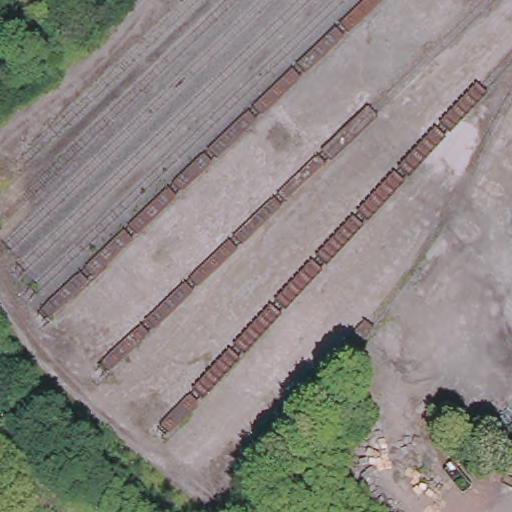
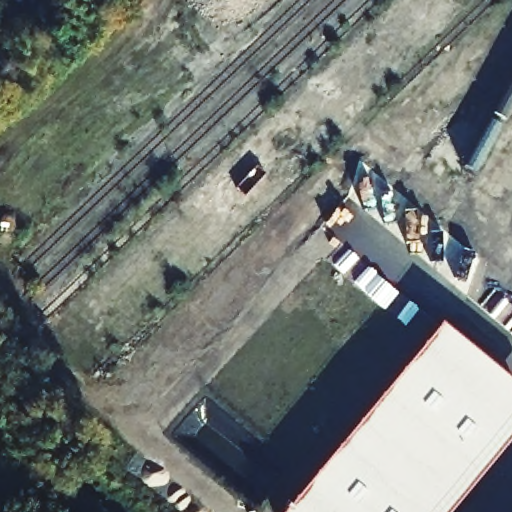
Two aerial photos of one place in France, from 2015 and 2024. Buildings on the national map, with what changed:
new [(512,386),(512,442),(454,512),(288,512),(443,329),(512,386)]

